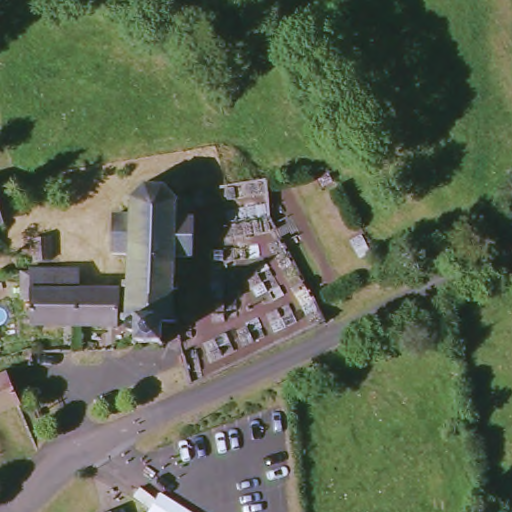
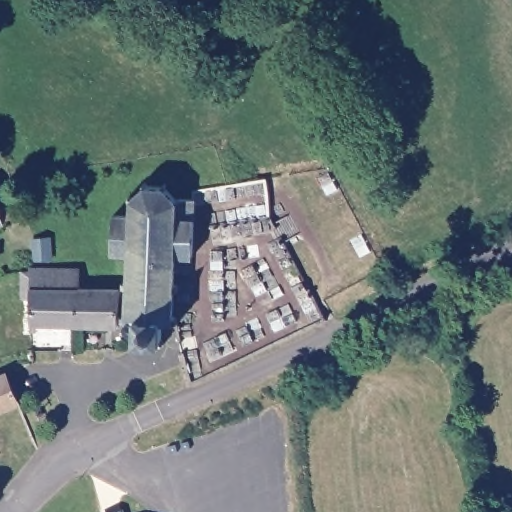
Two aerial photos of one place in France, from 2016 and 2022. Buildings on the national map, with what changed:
unchanged [(15,180),(25,213),(2,220),(3,223),(0,224),(0,185),(15,180)]
unchanged [(111,253),(113,215),(131,216),(132,200),(128,199),(130,195),(133,197),(145,187),(143,183),(146,182),(147,186),(162,187),(165,183),(167,184),(166,188),(175,199),(179,198),(195,199),(192,257),(175,256),(174,284),(180,284),(179,289),(173,289),(172,317),(178,317),(178,322),(172,322),(162,322),(161,339),(165,343),(162,346),(158,342),(139,341),(135,345),(132,342),(136,338),(136,331),(132,331),(129,330),(127,329),(126,326),(126,320),(121,320),(121,315),(126,315),(127,305),(128,287),(122,287),(122,281),(128,282),(130,254),(111,253)]
unchanged [(50,238),(51,259),(34,260),(32,240),(50,238)]
unchanged [(80,270),(80,286),(120,289),(119,304),(117,326),(30,325),(31,298),(22,299),(21,272),(30,272),(30,269),(51,269),(80,270)]
unchanged [(6,375),(18,403),(0,411),(0,377),(6,375)]
unchanged [(126,511),(127,512),(123,512),(126,511)]

